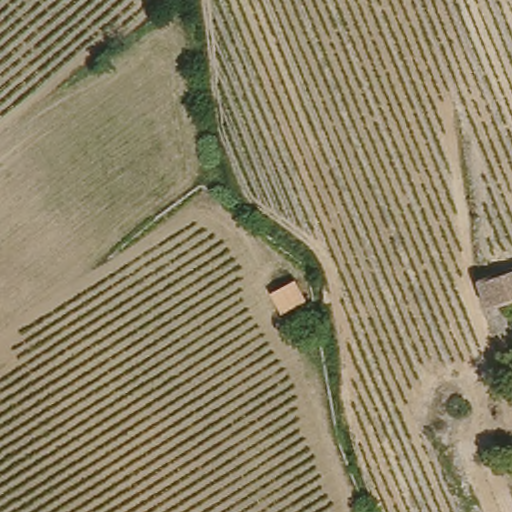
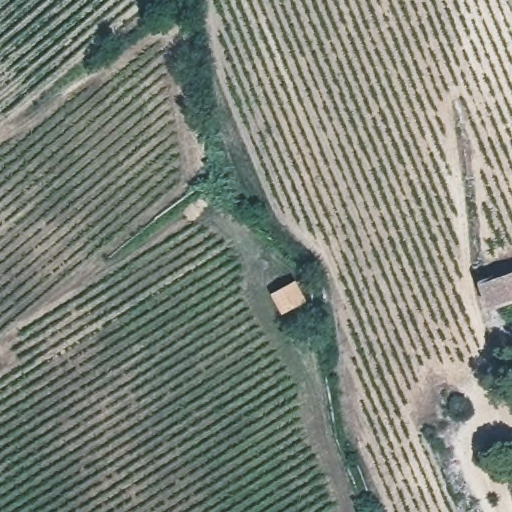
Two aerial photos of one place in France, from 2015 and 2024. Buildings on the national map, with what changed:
unchanged [(476,281),(512,270),(512,297),(483,306),(476,281)]
unchanged [(302,305),(277,314),(267,289),(291,279),(302,305)]

